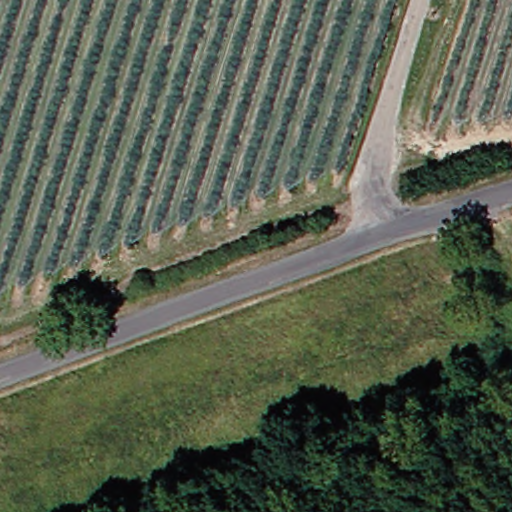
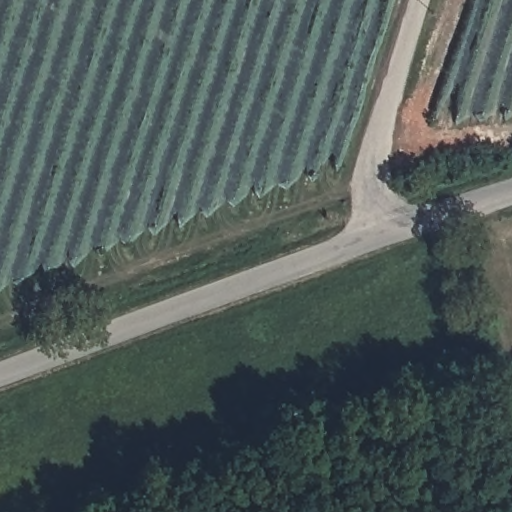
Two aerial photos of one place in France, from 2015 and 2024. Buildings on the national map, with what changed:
unchanged [(476,252),(471,235),(485,229),(491,250),(476,252)]

